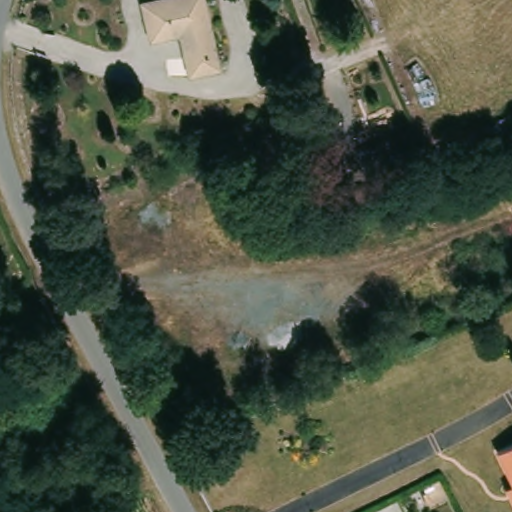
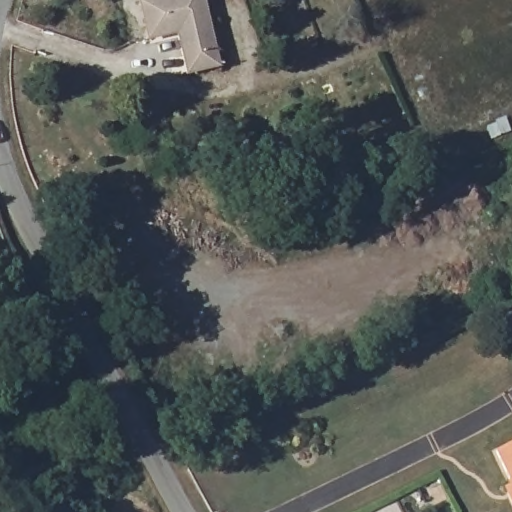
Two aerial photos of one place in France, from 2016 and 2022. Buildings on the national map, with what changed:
unchanged [(158,0),(202,0),(224,64),(190,75),(175,32),(150,40),(137,7),(158,0)]
unchanged [(512,442),(512,469),(502,447),(512,442)]
unchanged [(512,482),(512,488),(509,483),(512,482)]

